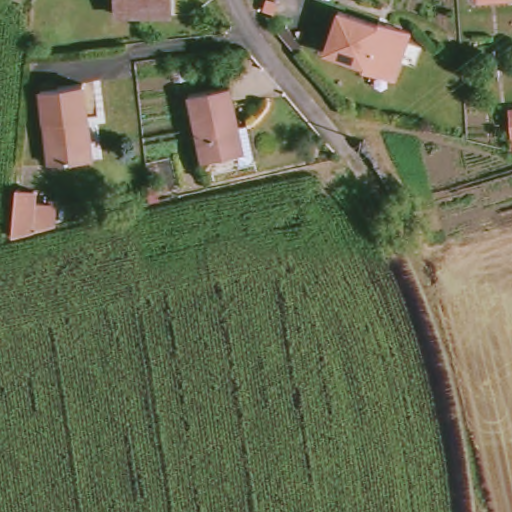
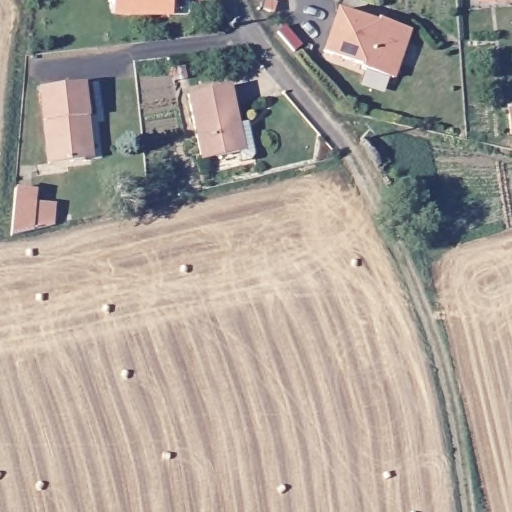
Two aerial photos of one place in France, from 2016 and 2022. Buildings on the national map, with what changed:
unchanged [(114,14),(114,0),(167,0),(167,14),(114,14)]
unchanged [(374,23),(373,25),(381,27),(383,22),(406,30),(389,78),(360,67),(360,64),(322,52),(335,12),(374,23)]
unchanged [(184,84),(171,86),(169,72),(183,70),(184,84)]
unchanged [(234,122),(244,122),(250,154),(247,159),(237,161),(235,151),(199,158),(185,93),(227,84),(234,122)]
unchanged [(82,162),(48,167),(40,92),(82,87),(85,117),(85,119),(89,161),(82,162)]
unchanged [(504,114),(512,113),(512,139),(506,139),(504,114)]
unchanged [(32,188),(32,201),(52,202),(52,224),(10,235),(12,187),(32,188)]

